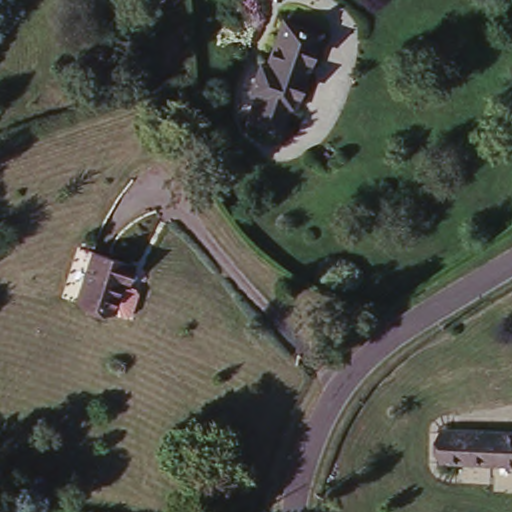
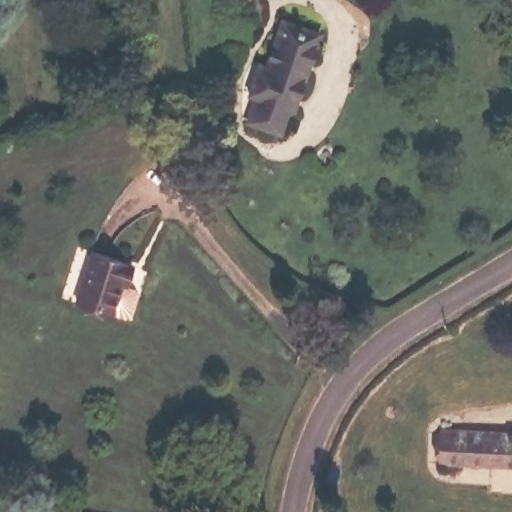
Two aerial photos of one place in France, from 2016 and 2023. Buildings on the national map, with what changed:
unchanged [(247,122),(254,98),(249,96),(259,59),(266,61),(280,20),(320,31),(296,107),(291,105),(281,132),(247,122)]
unchanged [(126,316),(122,319),(71,306),(84,255),(138,268),(126,316)]
unchanged [(512,438),(512,468),(431,467),(431,438),(512,438)]

